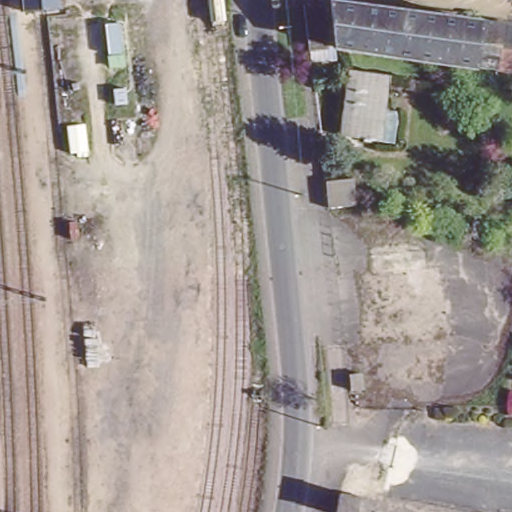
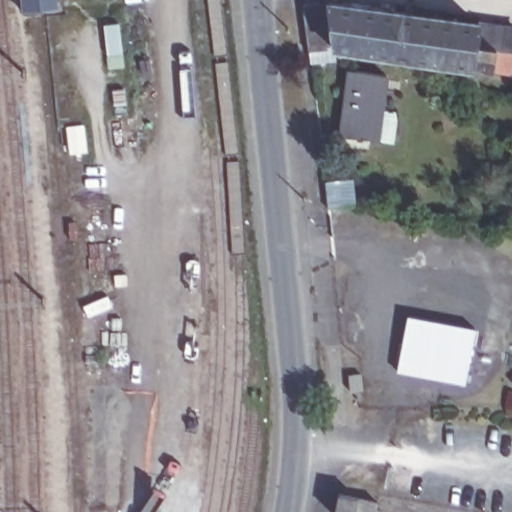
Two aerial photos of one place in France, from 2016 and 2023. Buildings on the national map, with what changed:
unchanged [(23,12),(22,0),(59,0),(60,7),(23,12)]
unchanged [(310,46),(305,2),(306,1),(314,0),(331,0),(337,44),(332,45),(333,56),(311,58),(310,46)]
unchanged [(337,44),(331,0),(344,0),(512,26),(512,68),(511,71),(337,44)]
unchanged [(385,71),(379,107),(391,109),(392,118),(391,130),(390,139),(335,131),(345,66),(385,71)]
unchanged [(326,178),(350,176),(352,198),(352,204),(329,205),(327,193),(326,181),(326,178)]
new [(408,315),(476,329),(465,384),(396,371),(408,315)]
unchanged [(348,374),(360,373),(361,388),(350,389),(348,374)]
unchanged [(338,512),(340,493),(360,496),(379,500),(377,512),(338,512)]

